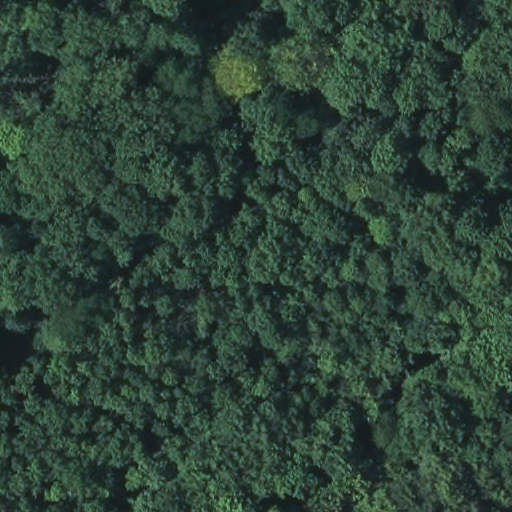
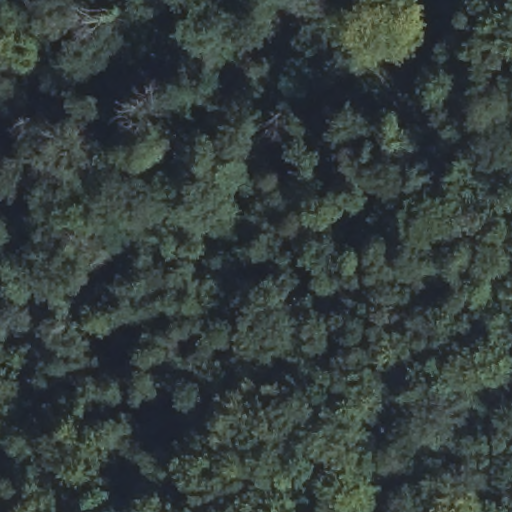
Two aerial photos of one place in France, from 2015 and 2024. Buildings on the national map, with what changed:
unchanged [(125,52),(151,24),(182,46),(158,79),(125,52)]

